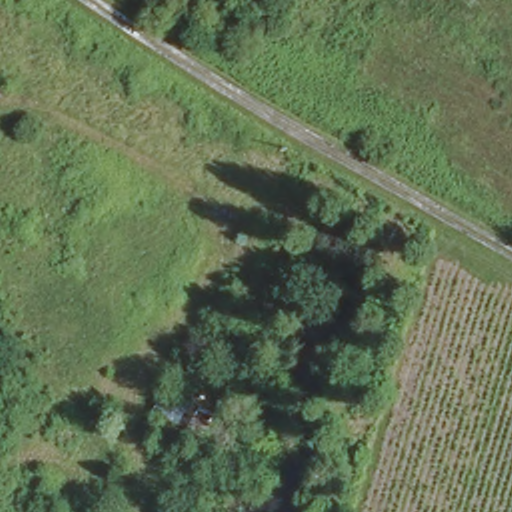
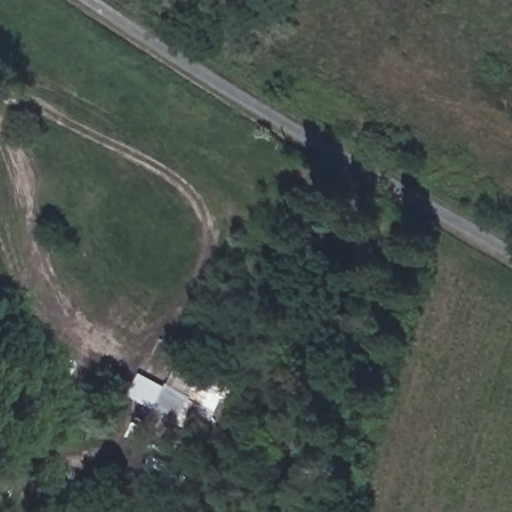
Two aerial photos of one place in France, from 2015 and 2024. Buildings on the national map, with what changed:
unchanged [(159,384),(188,397),(173,428),(145,413),(159,384)]

